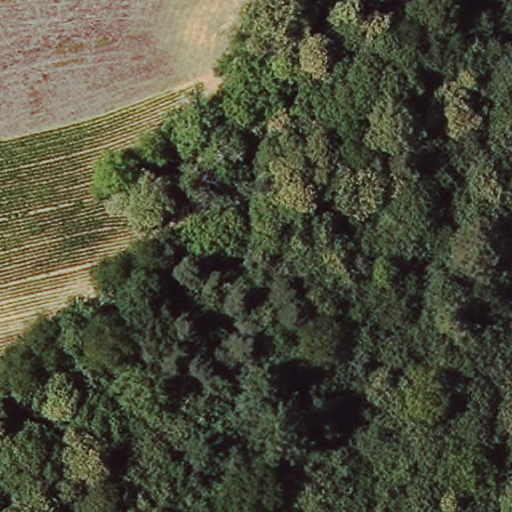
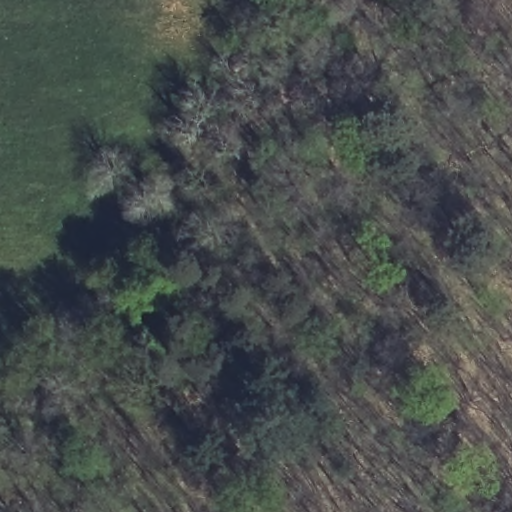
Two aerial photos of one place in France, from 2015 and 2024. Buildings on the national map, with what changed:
unchanged [(228,65),(231,55),(239,55),(244,62),(241,69),(234,71),(228,65)]

